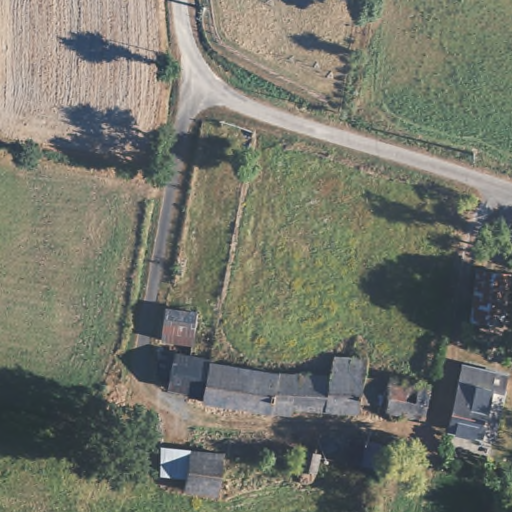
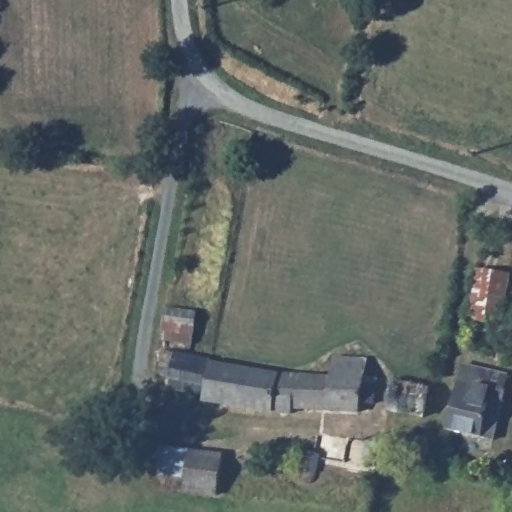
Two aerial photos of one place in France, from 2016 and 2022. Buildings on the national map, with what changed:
unchanged [(481,274),(510,277),(503,325),(473,321),(481,274)]
unchanged [(164,330),(165,316),(192,322),(190,335),(164,330)]
unchanged [(331,378),(334,360),(368,364),(364,380),(380,384),(376,403),(363,400),(359,416),(294,416),(299,378),(316,377),(331,378)]
unchanged [(209,369),(204,405),(171,400),(173,396),(172,390),(167,387),(161,387),(164,365),(190,366),(209,369)]
unchanged [(204,405),(209,369),(258,374),(299,378),(294,416),(294,425),(203,412),(204,405)]
unchanged [(455,372),(509,384),(496,442),(443,431),(455,372)]
unchanged [(393,417),(400,382),(437,389),(429,425),(393,417)]
unchanged [(314,452),(310,470),(294,467),(295,458),(300,440),(316,443),(314,452)]
unchanged [(355,455),(372,458),(371,465),(368,483),(350,479),(355,455)]
unchanged [(211,501),(179,495),(182,484),(185,460),(219,465),(211,501)]

